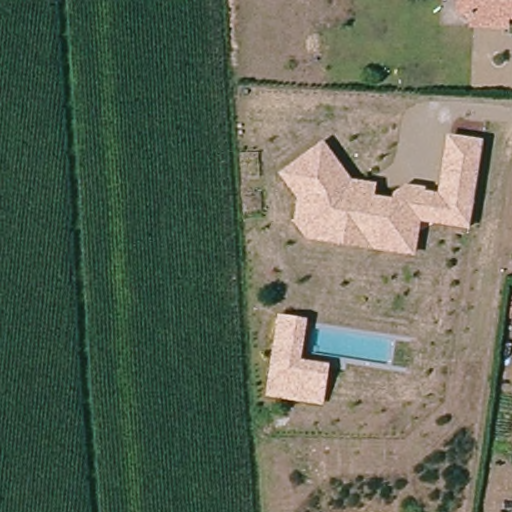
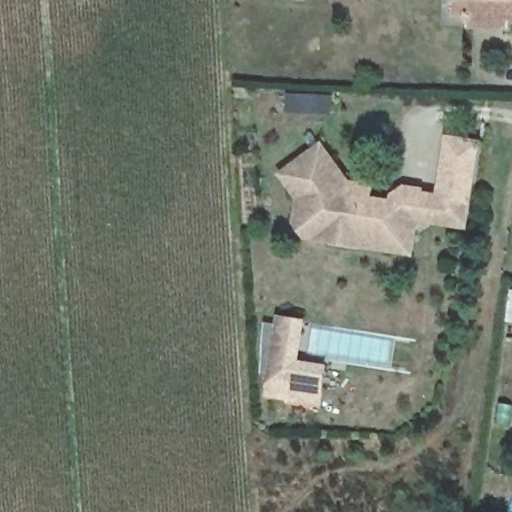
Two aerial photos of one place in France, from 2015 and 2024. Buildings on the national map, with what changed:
unchanged [(502,16),(496,22),(476,21),(470,14),(462,14),(462,0),(512,0),(512,16),(502,16)]
unchanged [(437,192),(446,135),(483,140),(468,231),(419,223),(416,257),(307,241),(292,221),(297,201),(277,173),(323,140),(350,179),(376,182),(374,195),(392,197),(392,194),(407,184),(427,185),(426,190),(437,192)]
unchanged [(300,360),(329,363),(321,405),(266,394),(278,315),(306,320),(300,360)]

